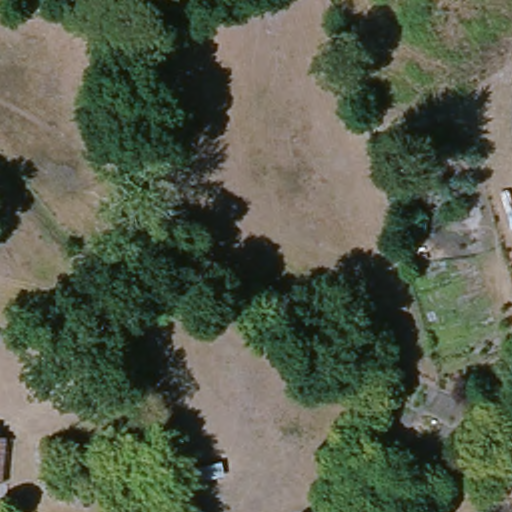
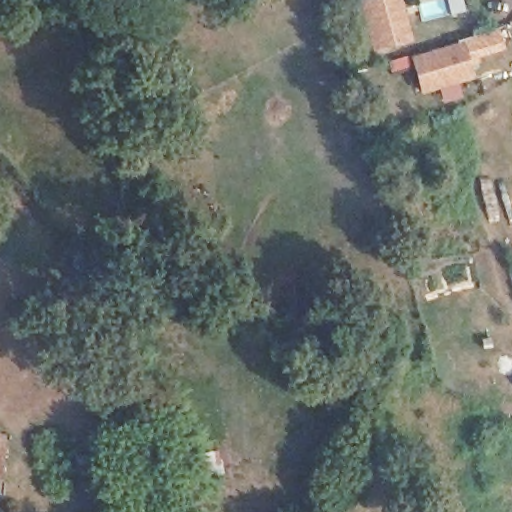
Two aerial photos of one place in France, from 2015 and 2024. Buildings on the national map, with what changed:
new [(359,0),(401,0),(412,42),(370,51),(357,1),(359,0)]
new [(410,56),(463,41),(473,79),(421,94),(410,56)]
unchanged [(0,477),(0,431),(3,431),(0,477)]

